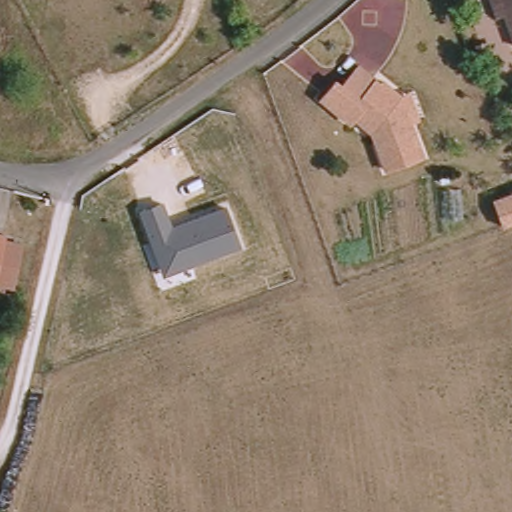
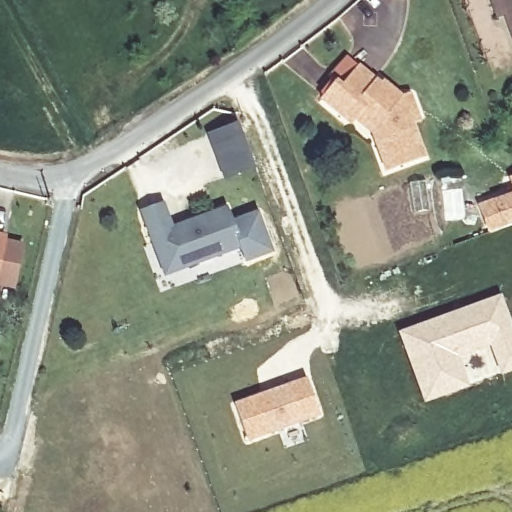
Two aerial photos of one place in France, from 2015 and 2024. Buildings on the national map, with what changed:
unchanged [(512,35),(501,0),(512,0),(512,35)]
unchanged [(410,120),(422,153),(385,168),(367,119),(353,117),(349,122),(320,99),(335,81),(341,85),(358,65),(380,82),(382,80),(401,94),(410,120)]
new [(232,181),(225,162),(215,138),(245,127),(253,151),(260,169),(232,181)]
unchanged [(492,201),(512,193),(512,224),(502,227),(492,201)]
unchanged [(244,247),(165,278),(140,211),(165,202),(173,227),(227,207),(244,247)]
unchanged [(2,238),(0,245),(0,237),(2,238)]
new [(403,333),(445,317),(448,328),(485,315),(480,303),(502,296),(512,322),(512,367),(505,370),(494,341),(458,355),(469,383),(447,392),(428,400),(415,363),(403,333)]
new [(307,376),(322,416),(246,442),(232,402),(307,376)]

